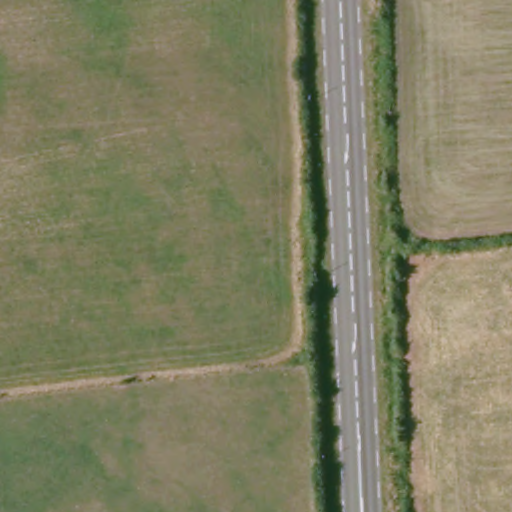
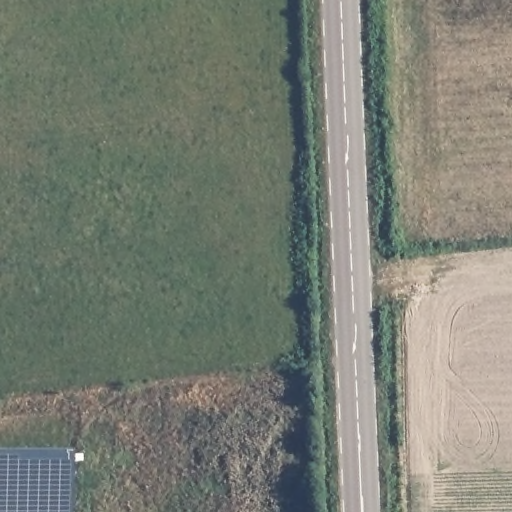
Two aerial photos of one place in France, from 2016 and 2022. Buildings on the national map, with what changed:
new [(67,450),(68,456),(69,512),(0,512),(0,450),(67,450)]

